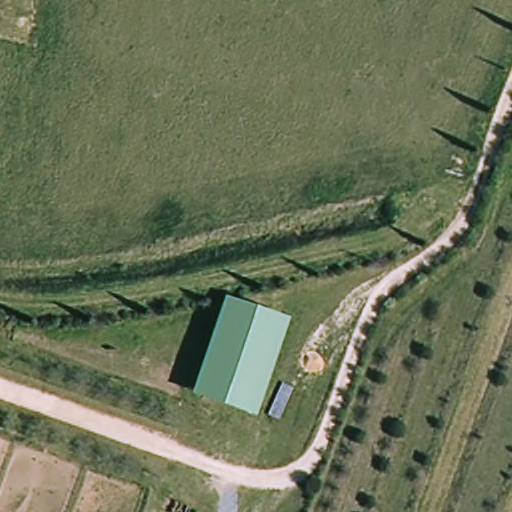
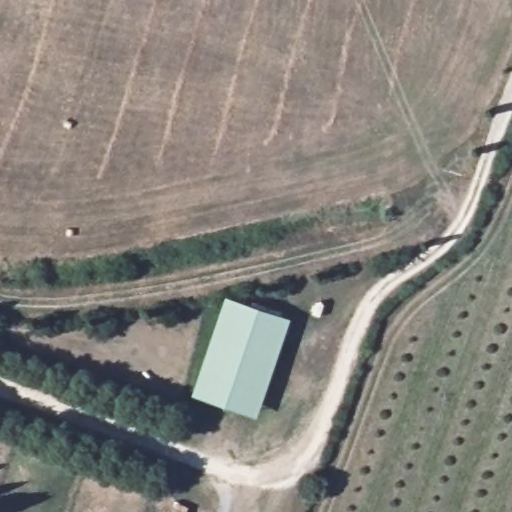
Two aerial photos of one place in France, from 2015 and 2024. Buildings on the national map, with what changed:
unchanged [(195,397),(225,298),(292,320),(260,419),(195,397)]

